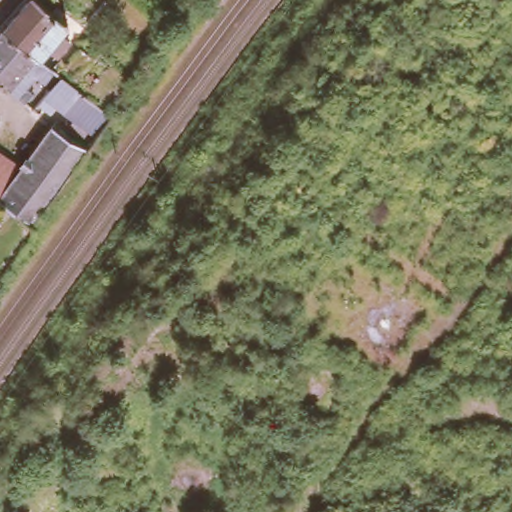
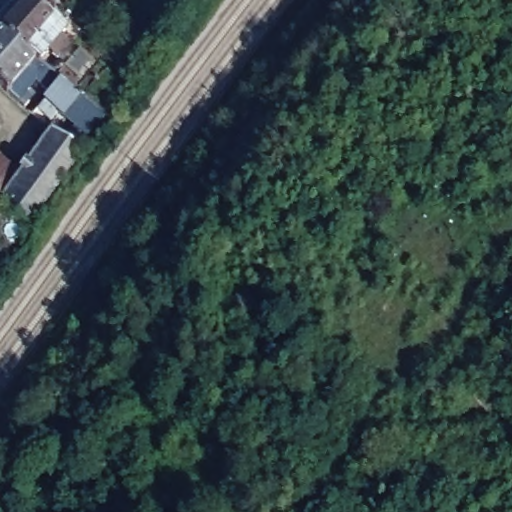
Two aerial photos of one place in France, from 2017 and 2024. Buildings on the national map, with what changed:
unchanged [(67,107),(61,102),(55,110),(41,100),(48,92),(55,85),(43,74),(43,71),(35,82),(39,86),(35,91),(30,96),(23,91),(13,83),(0,72),(0,31),(7,22),(27,0),(48,0),(71,21),(63,30),(73,38),(60,52),(50,45),(43,52),(45,54),(66,71),(84,86),(116,114),(101,133),(91,146),(36,221),(2,196),(23,168),(54,126),(58,120),(62,123),(72,110),(67,107)]
unchanged [(87,75),(66,57),(78,44),(100,61),(87,75)]
unchanged [(2,196),(0,195),(0,149),(23,168),(2,196)]

